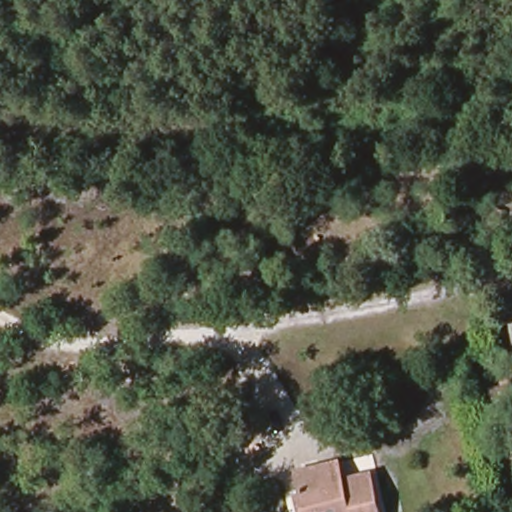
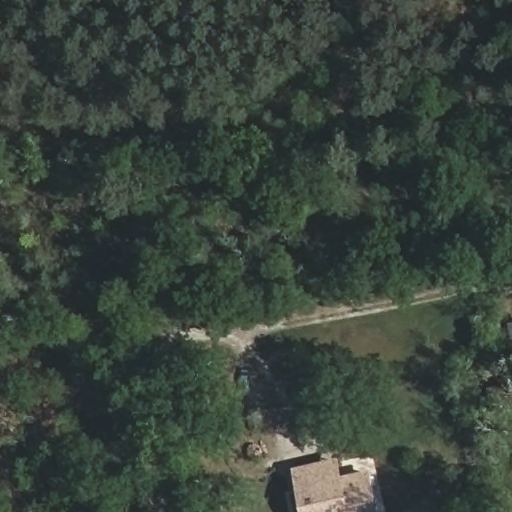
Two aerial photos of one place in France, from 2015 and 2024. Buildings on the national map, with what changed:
unchanged [(485,420),(483,384),(508,384),(510,417),(485,420)]
unchanged [(337,462),(341,480),(368,475),(377,512),(300,512),(293,473),(337,462)]

